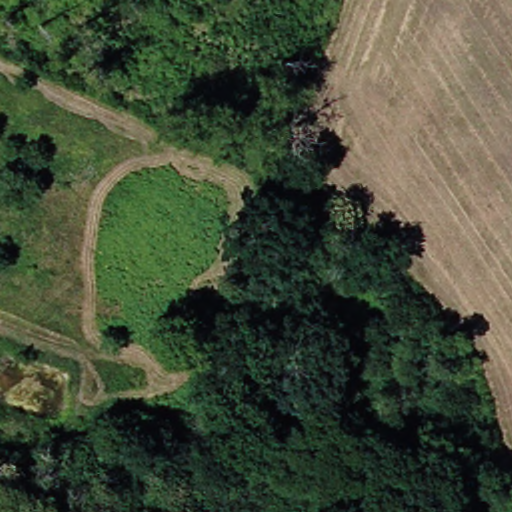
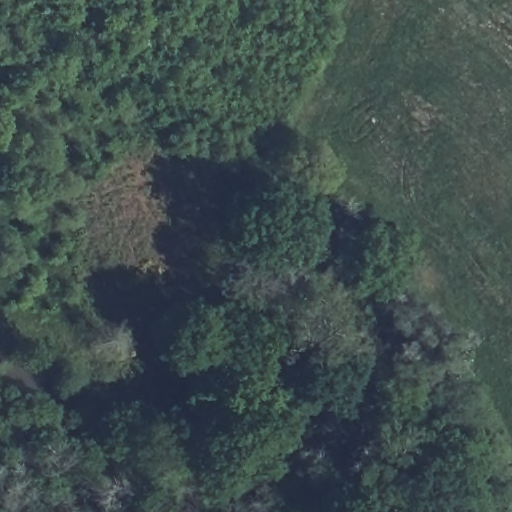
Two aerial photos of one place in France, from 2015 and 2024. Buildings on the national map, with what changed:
[]

